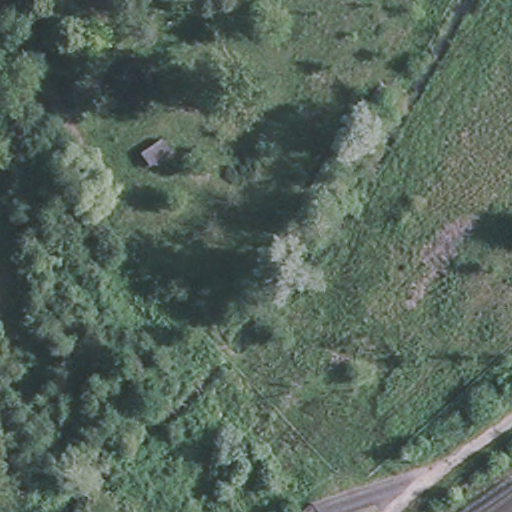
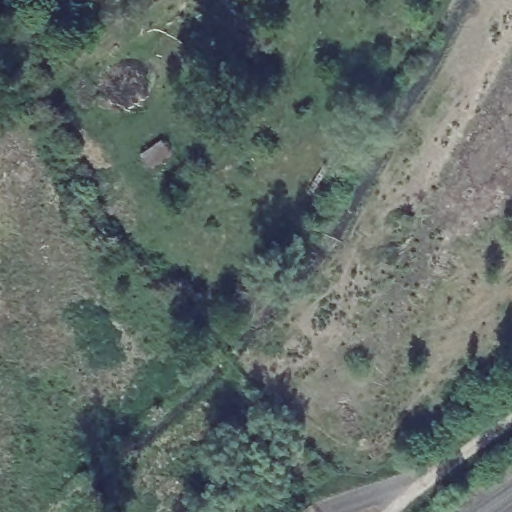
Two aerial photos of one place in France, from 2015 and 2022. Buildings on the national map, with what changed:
unchanged [(148,168),(142,153),(152,145),(160,139),(172,157),(151,167),(148,168)]

